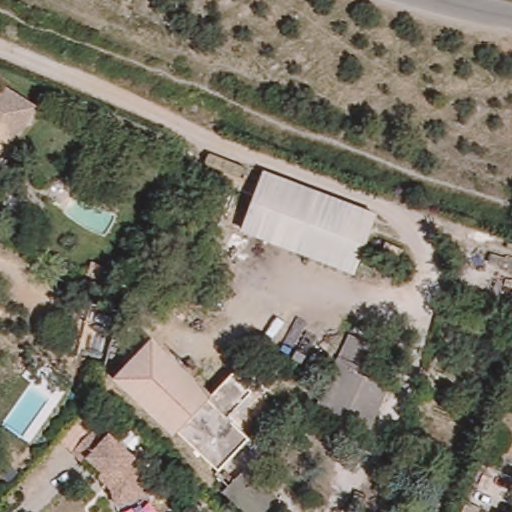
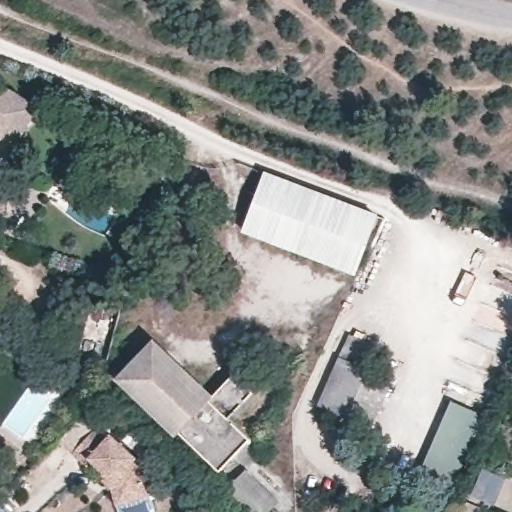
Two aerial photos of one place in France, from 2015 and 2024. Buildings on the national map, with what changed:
unchanged [(0,125),(0,74),(0,73),(34,94),(44,100),(33,117),(20,138),(0,125)]
unchanged [(374,217),(353,273),(242,231),(263,174),(374,217)]
unchanged [(393,382),(375,423),(321,400),(343,352),(353,329),(374,339),(364,361),(361,368),(393,382)]
unchanged [(125,375),(157,342),(212,394),(235,371),(255,388),(234,415),(257,435),(223,469),(125,375)]
new [(483,414),(453,486),(419,471),(450,400),(483,414)]
unchanged [(117,483),(102,470),(107,464),(94,452),(89,458),(76,446),(98,422),(111,435),(115,430),(139,451),(137,454),(145,463),(152,491),(128,498),(121,500),(117,483)]
unchanged [(254,464),(288,497),(274,512),(260,512),(233,486),(254,464)]

